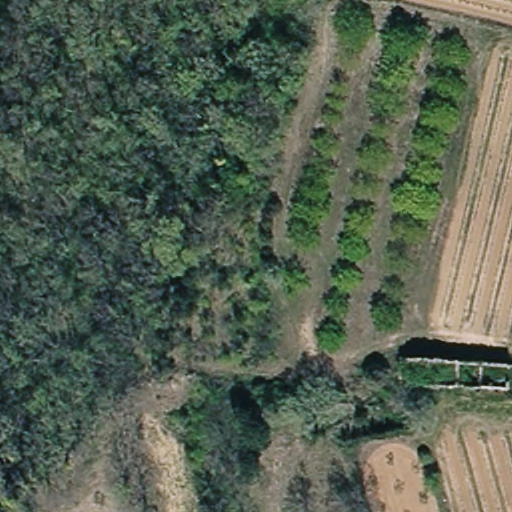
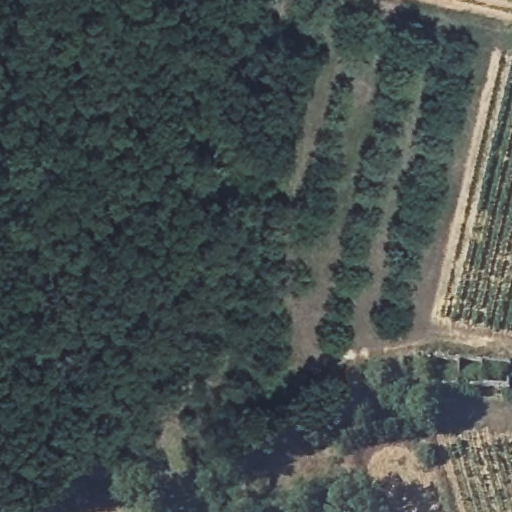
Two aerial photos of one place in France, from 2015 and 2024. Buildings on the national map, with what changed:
[]

